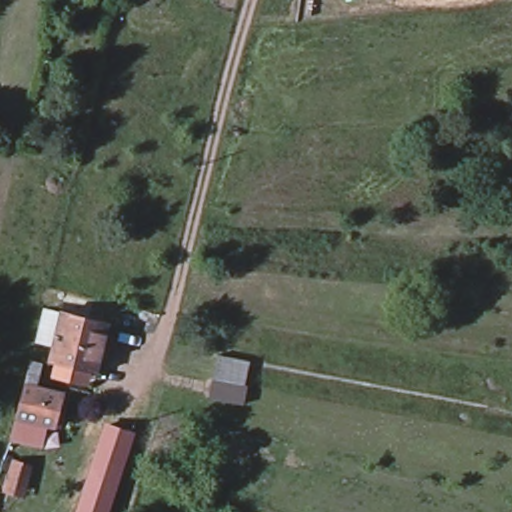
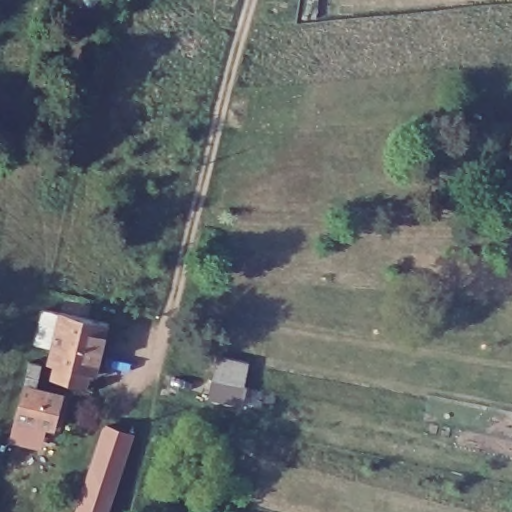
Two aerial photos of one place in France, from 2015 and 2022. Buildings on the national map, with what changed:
unchanged [(67,369),(69,364),(51,360),(63,311),(110,322),(97,371),(82,367),(81,373),(67,369)]
unchanged [(246,362),(235,410),(204,404),(215,356),(246,362)]
unchanged [(54,428),(17,417),(26,385),(31,360),(43,363),(37,388),(64,395),(54,428)]
unchanged [(109,512),(75,512),(106,423),(137,433),(109,512)]

